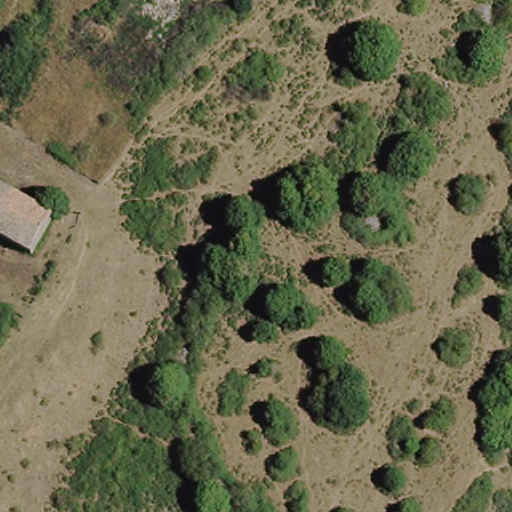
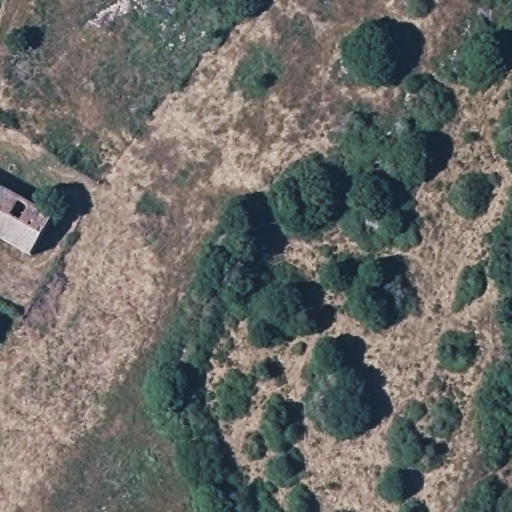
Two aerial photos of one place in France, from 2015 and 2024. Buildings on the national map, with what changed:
unchanged [(45,221),(26,256),(0,241),(0,193),(45,221)]

